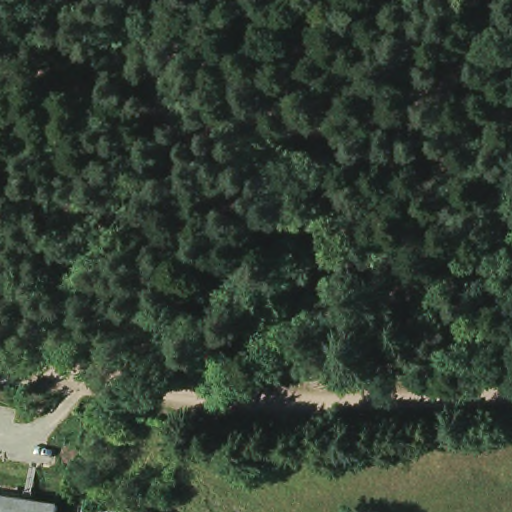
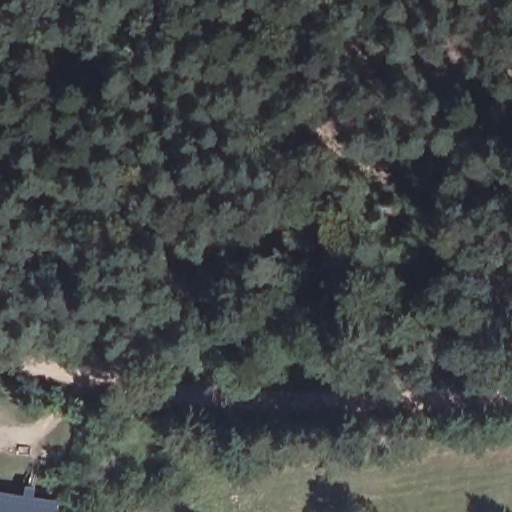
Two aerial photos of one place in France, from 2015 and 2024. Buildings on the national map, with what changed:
unchanged [(60,512),(0,512),(0,495),(5,495),(62,504),(60,512)]
unchanged [(90,504),(89,512),(78,512),(79,502),(90,504)]
unchanged [(129,509),(147,512),(128,512),(129,509)]

